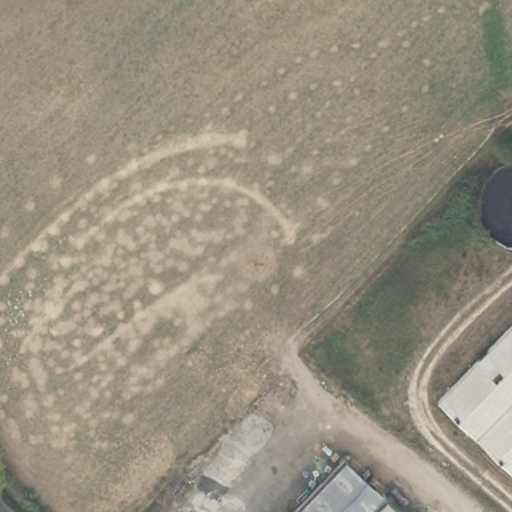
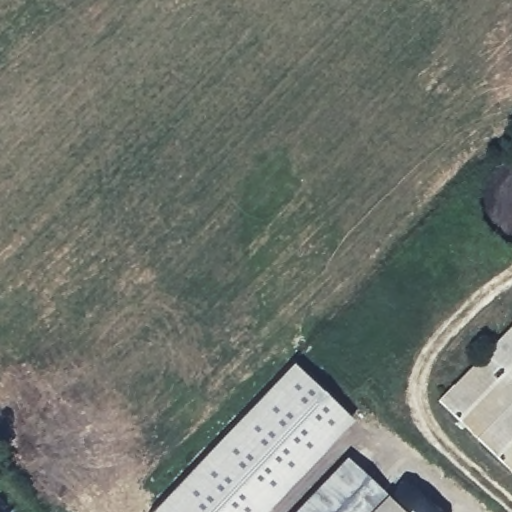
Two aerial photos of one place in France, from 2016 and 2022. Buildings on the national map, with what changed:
unchanged [(512,322),(512,472),(510,475),(435,398),(512,322)]
new [(353,419),(263,512),(146,512),(292,361),(353,419)]
unchanged [(347,462),(402,512),(301,512),(347,462)]

